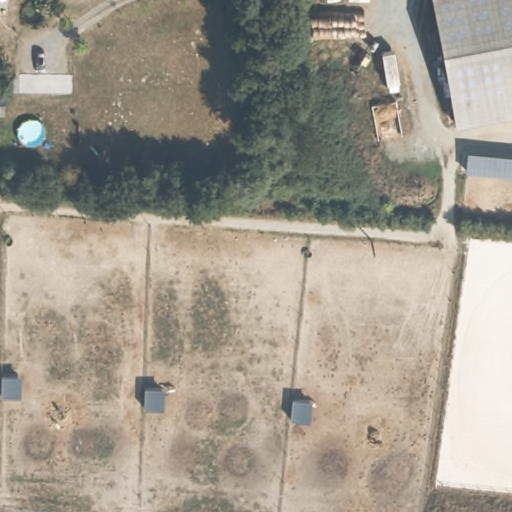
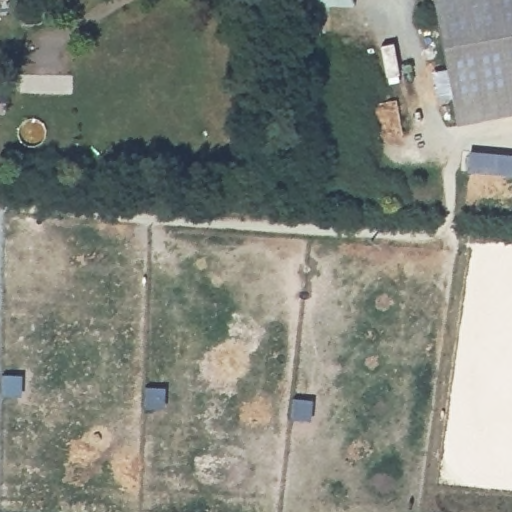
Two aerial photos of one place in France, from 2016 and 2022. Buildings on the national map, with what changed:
unchanged [(455,126),(436,0),(512,0),(512,114),(455,126)]
unchanged [(9,112),(0,112),(0,86),(8,86),(9,112)]
unchanged [(467,170),(471,151),(512,154),(512,174),(467,170)]

